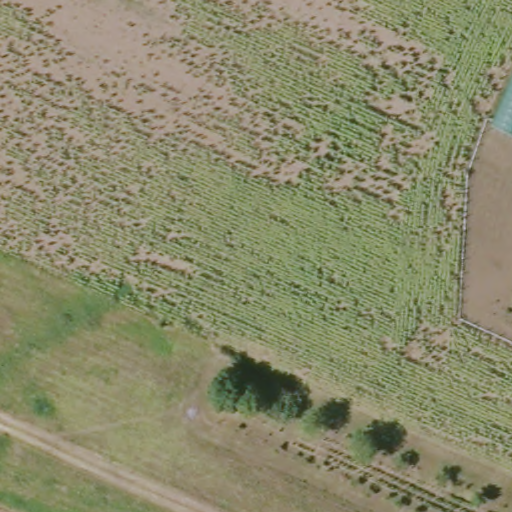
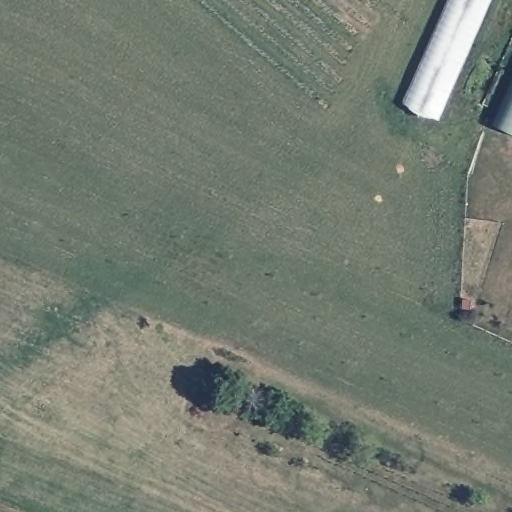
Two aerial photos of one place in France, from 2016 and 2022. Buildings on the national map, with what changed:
new [(447,0),(491,0),(437,119),(402,104),(447,0)]
unchanged [(512,73),(512,130),(493,122),(512,73)]

